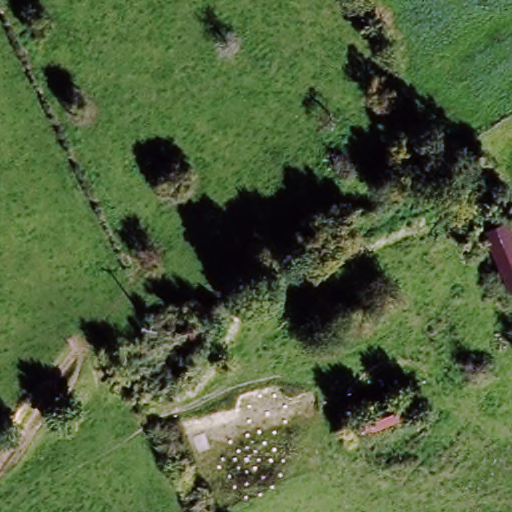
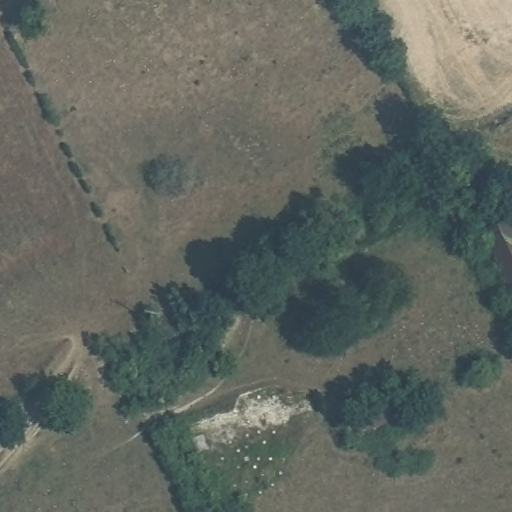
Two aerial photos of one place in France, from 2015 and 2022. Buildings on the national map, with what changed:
unchanged [(509,297),(484,235),(510,225),(512,232),(512,296),(509,297)]
unchanged [(337,423),(402,397),(412,421),(346,448),(337,423)]

